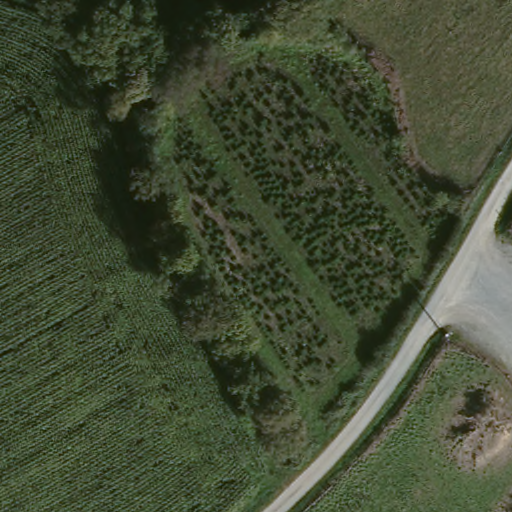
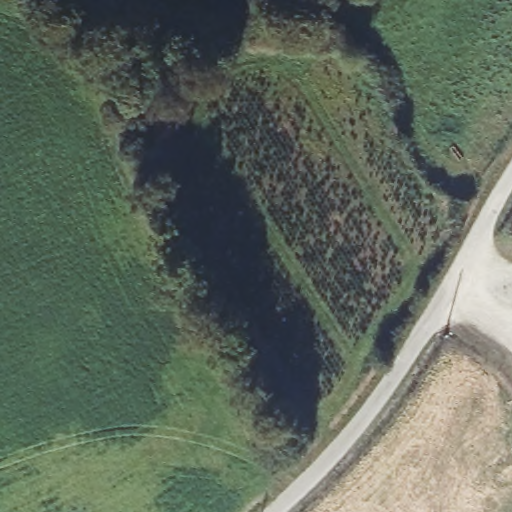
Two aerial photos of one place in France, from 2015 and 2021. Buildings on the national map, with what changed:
[]

